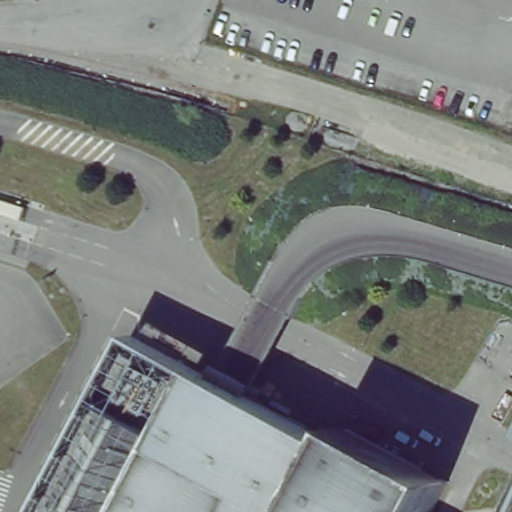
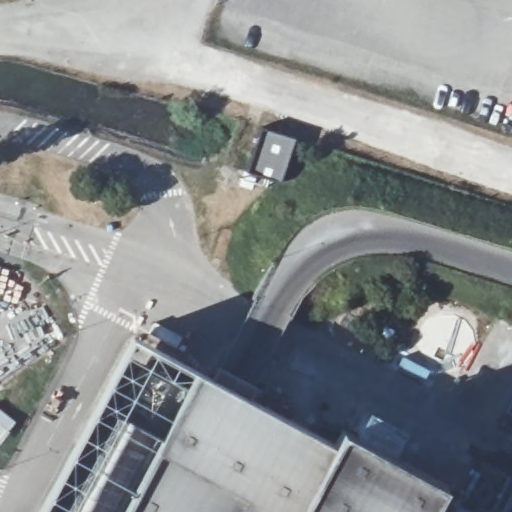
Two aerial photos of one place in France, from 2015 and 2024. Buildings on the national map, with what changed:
new [(262,127),(297,138),(283,183),(248,172),(262,127)]
unchanged [(159,373),(203,396),(211,380),(341,448),(349,432),(450,485),(436,512),(87,512),(159,373)]
new [(17,420),(0,443),(0,407),(17,420)]

